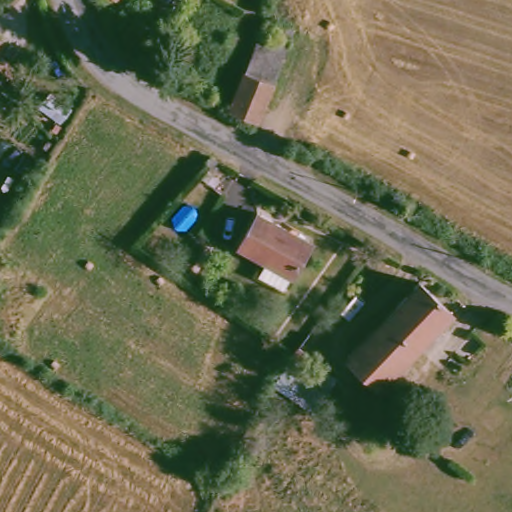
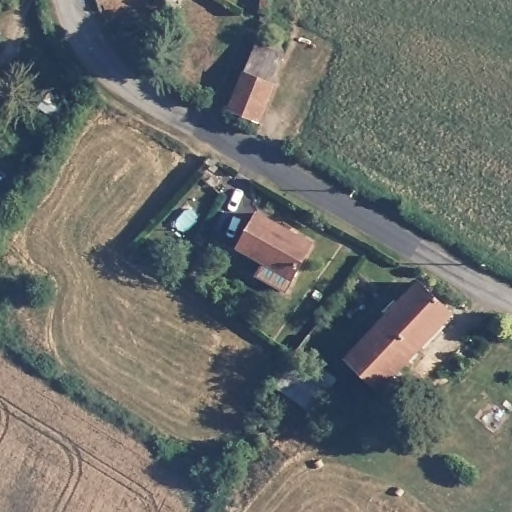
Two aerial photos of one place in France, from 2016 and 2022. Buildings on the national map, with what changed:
unchanged [(159,18),(148,7),(155,0),(176,0),(159,18)]
unchanged [(270,83),(252,122),(222,109),(238,73),(259,20),(290,25),(270,83)]
unchanged [(0,85),(0,79),(2,81),(0,85)]
unchanged [(60,131),(43,120),(60,92),(78,103),(60,131)]
unchanged [(303,249),(283,280),(230,247),(250,216),(303,249)]
unchanged [(441,316),(443,320),(369,395),(335,364),(412,285),(417,279),(450,308),(441,316)]

